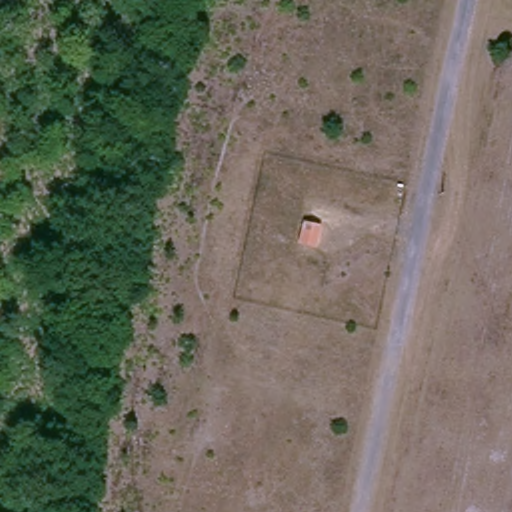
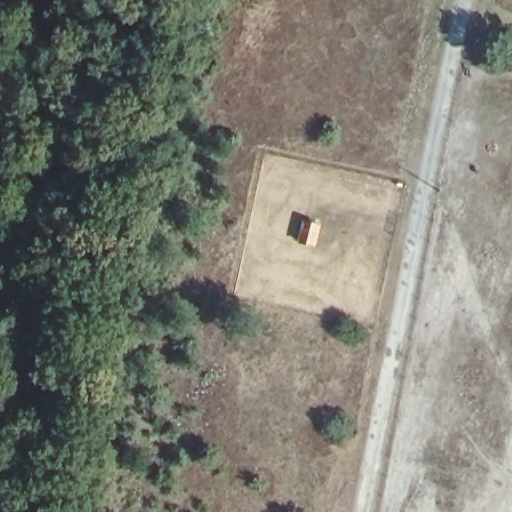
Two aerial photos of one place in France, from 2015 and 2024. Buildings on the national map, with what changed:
[]

